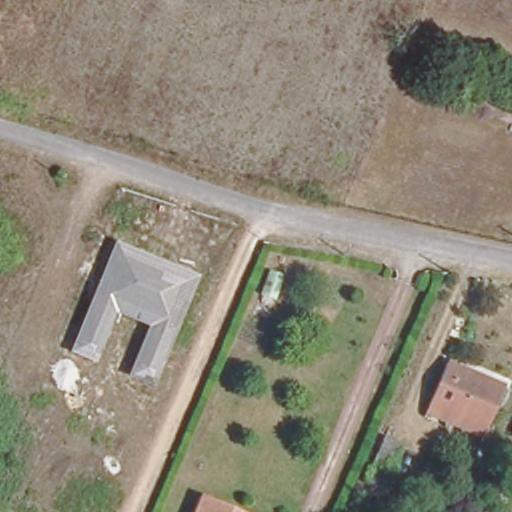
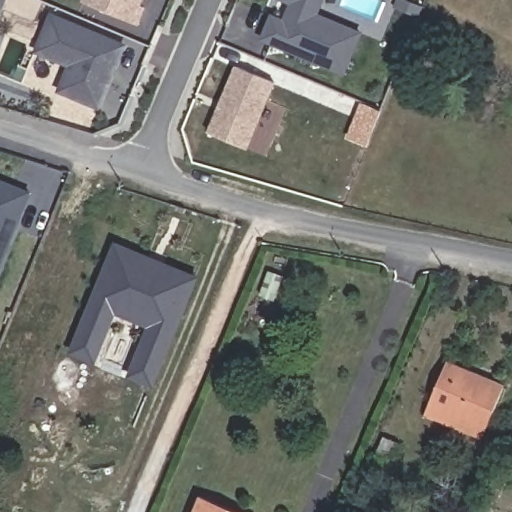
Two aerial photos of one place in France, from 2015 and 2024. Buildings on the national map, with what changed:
new [(0,5),(0,0),(2,0),(0,5)]
new [(140,10),(145,13),(139,28),(79,3),(81,0),(145,0),(140,10)]
new [(283,24),(293,0),(322,0),(315,17),(353,32),(336,72),(262,41),(271,19),(283,24)]
new [(52,16),(123,45),(99,107),(60,91),(71,65),(37,52),(52,16)]
new [(234,67),(272,83),(244,149),(207,134),(234,67)]
new [(26,199),(0,264),(0,188),(26,199)]
unchanged [(116,314),(96,363),(70,352),(115,242),(199,276),(153,387),(127,375),(147,327),(116,314)]
unchanged [(481,438),(424,416),(445,366),(502,388),(481,438)]
unchanged [(194,512),(198,503),(220,512),(194,512)]

